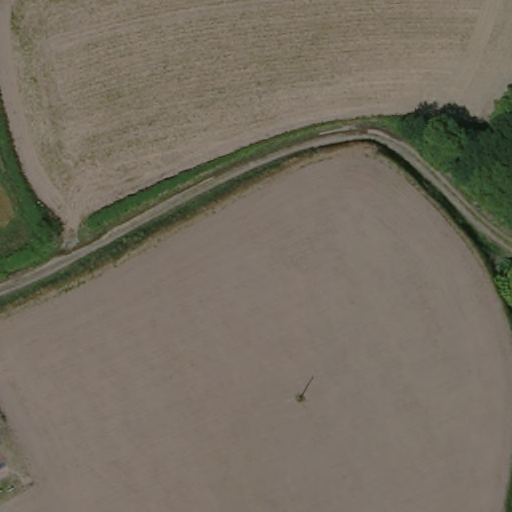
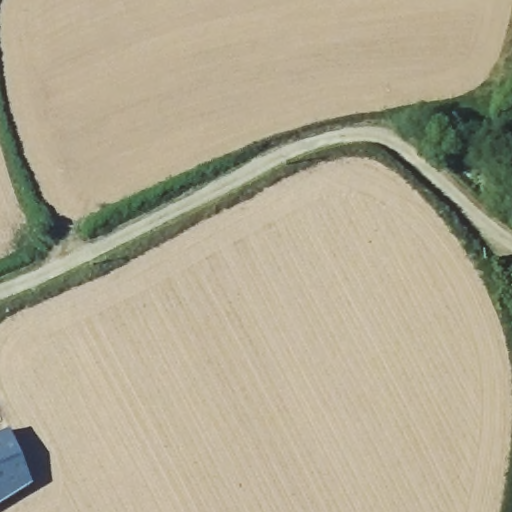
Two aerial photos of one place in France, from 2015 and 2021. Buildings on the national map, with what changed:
new [(29,485),(0,502),(0,433),(8,430),(29,485)]

